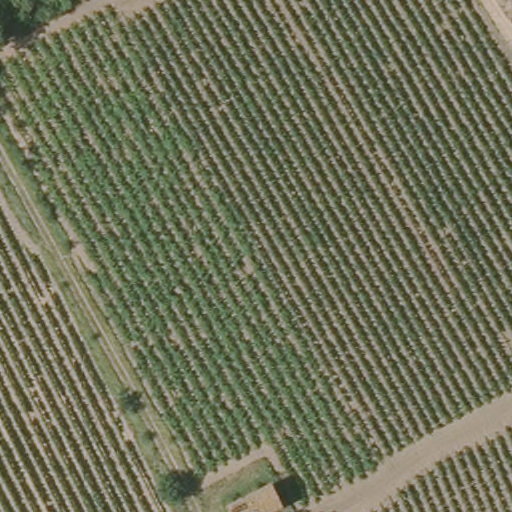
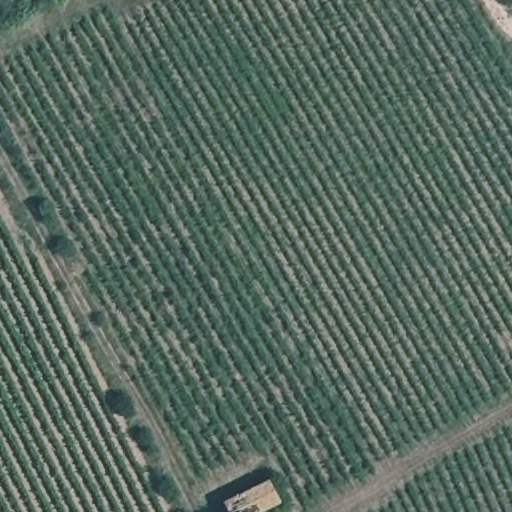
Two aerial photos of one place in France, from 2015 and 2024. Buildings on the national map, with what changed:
unchanged [(239,512),(234,501),(284,477),(294,498),(265,512),(239,512)]

